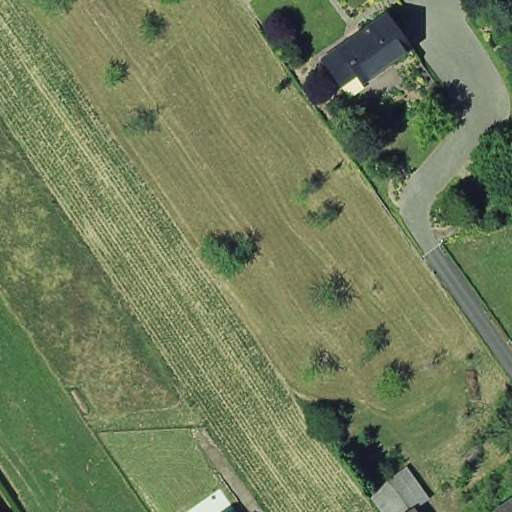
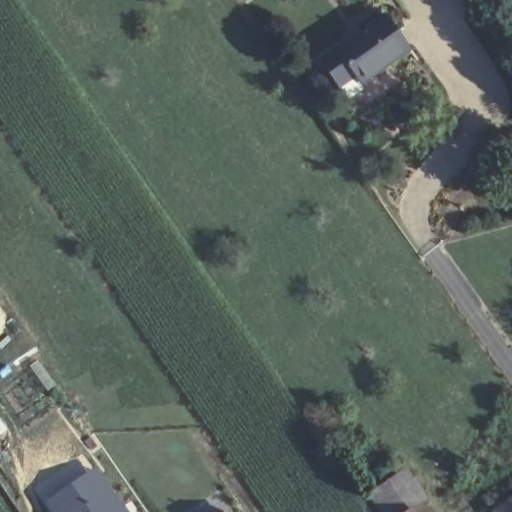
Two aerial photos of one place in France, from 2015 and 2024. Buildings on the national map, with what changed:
unchanged [(393,0),(384,7),(379,0),(393,0)]
unchanged [(338,46),(378,18),(386,13),(409,45),(401,50),(361,79),(355,71),(339,83),(321,58),(338,46)]
new [(7,429),(0,434),(0,419),(7,429)]
new [(98,464),(130,512),(49,512),(42,502),(98,464)]
unchanged [(369,492),(376,487),(380,492),(393,483),(409,472),(425,496),(409,507),(410,509),(412,512),(384,512),(369,492)]
unchanged [(512,500),(512,512),(494,512),(512,500)]

